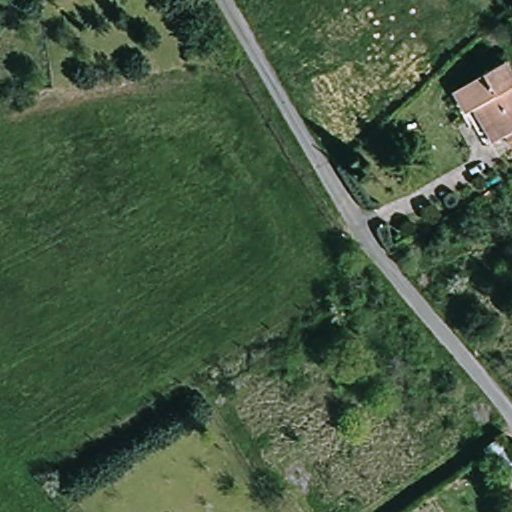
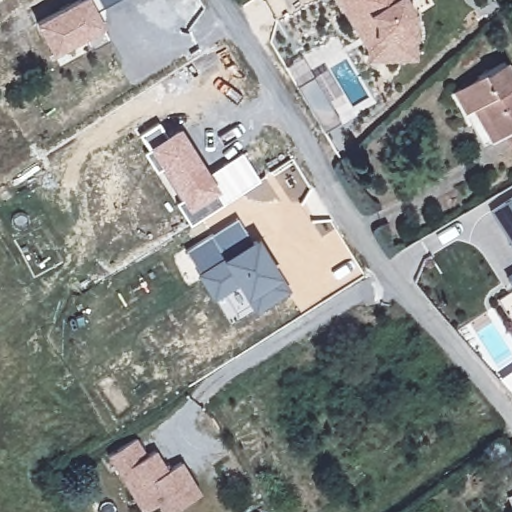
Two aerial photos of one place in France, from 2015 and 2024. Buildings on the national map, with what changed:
new [(86,0),(120,0),(98,12),(113,40),(93,50),(86,37),(56,53),(41,24),(86,0)]
new [(376,23),(377,58),(369,58),(368,49),(338,0),(362,0),(376,23)]
new [(413,12),(414,57),(377,58),(376,23),(362,0),(405,0),(413,12)]
unchanged [(474,103),(468,106),(457,84),(505,59),(512,72),(512,147),(505,134),(502,136),(493,141),(474,103)]
new [(178,204),(186,199),(166,167),(158,173),(146,154),(150,151),(141,136),(160,124),(169,139),(180,133),(208,176),(224,165),(245,153),(262,180),(241,192),(225,203),(212,212),(191,225),(178,204)]
new [(512,198),(512,243),(492,211),(512,198)]
new [(212,236),(227,260),(257,241),(287,289),(257,308),(239,281),(215,297),(186,251),(212,236)]
new [(507,277),(512,275),(512,285),(507,277)]
new [(497,299),(512,290),(512,321),(497,299)]
new [(112,457),(139,441),(149,458),(158,453),(169,473),(184,465),(203,497),(177,512),(164,512),(160,505),(149,512),(143,512),(134,495),(112,457)]

